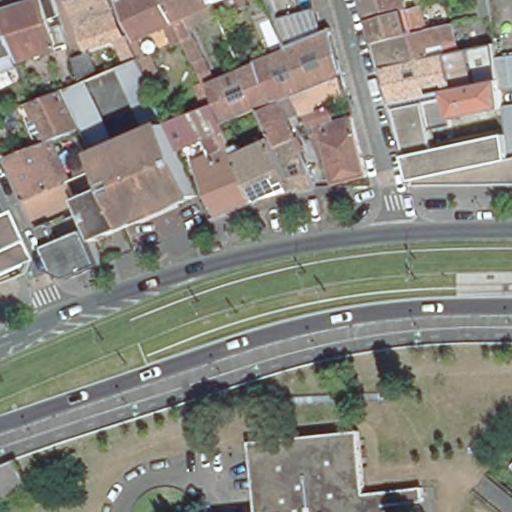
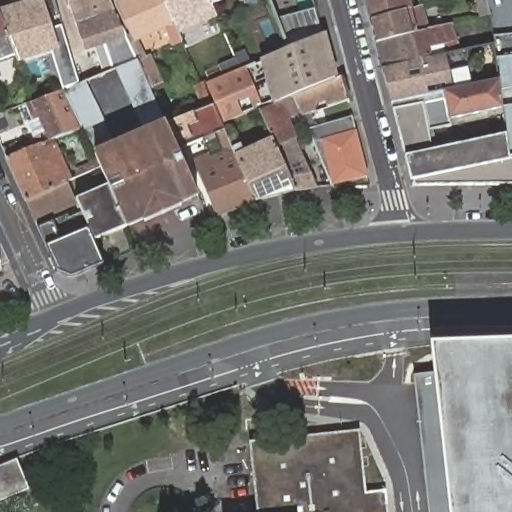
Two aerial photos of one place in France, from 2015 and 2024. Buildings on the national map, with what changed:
unchanged [(0,26),(0,8),(27,0),(50,0),(55,15),(45,18),(48,28),(57,24),(64,44),(14,59),(12,56),(0,60),(0,36),(0,26)]
unchanged [(109,6),(120,38),(85,49),(69,0),(111,0),(113,5),(109,6)]
unchanged [(184,40),(175,44),(165,25),(136,39),(119,1),(118,0),(165,0),(175,20),(184,40)]
unchanged [(184,18),(192,36),(211,78),(204,81),(202,81),(184,40),(175,20),(165,0),(211,0),(212,4),(184,18)]
unchanged [(287,47),(269,0),(323,0),(331,30),(287,47)]
unchanged [(410,10),(370,21),(364,0),(407,0),(408,5),(410,10)]
unchanged [(481,17),(477,0),(488,0),(490,15),(481,17)]
unchanged [(421,6),(425,20),(425,25),(427,30),(375,43),(370,21),(410,10),(421,6)]
unchanged [(453,24),(456,40),(428,48),(430,57),(390,66),(382,68),(375,43),(427,30),(453,24)]
unchanged [(255,60),(240,66),(230,45),(277,25),(286,48),(255,60)]
unchanged [(296,114),(286,118),(317,187),(296,190),(272,137),(260,109),(259,106),(222,120),(207,83),(256,64),(255,60),(286,48),(287,47),(331,30),(343,75),(348,93),(300,110),(296,103),(292,104),(296,114)]
unchanged [(500,79),(456,88),(442,91),(438,92),(434,93),(399,100),(390,66),(430,57),(495,44),(496,57),(500,79)]
unchanged [(73,59),(89,53),(97,75),(95,76),(85,80),(115,148),(95,156),(91,148),(82,128),(80,123),(79,119),(66,89),(66,88),(80,82),(73,59)]
unchanged [(393,109),(443,98),(442,91),(456,88),(500,79),(496,57),(512,55),(512,88),(501,89),(503,106),(450,119),(451,124),(430,129),(435,149),(507,136),(511,161),(512,161),(512,184),(413,185),(396,121),(393,109)]
unchanged [(114,69),(138,59),(166,123),(167,124),(143,135),(114,69)]
unchanged [(35,100),(66,88),(66,89),(79,119),(80,123),(82,128),(64,135),(53,140),(41,145),(38,138),(45,135),(37,118),(35,119),(29,103),(35,100)]
unchanged [(222,124),(235,153),(257,200),(220,216),(195,161),(211,154),(205,138),(179,149),(171,133),(167,124),(166,123),(214,104),(222,124)]
unchanged [(334,123),(353,116),(368,175),(332,184),(302,116),(328,107),(334,123)]
unchanged [(127,228),(115,200),(109,185),(105,177),(100,167),(97,168),(80,177),(76,170),(97,161),(95,156),(115,148),(143,135),(167,124),(171,133),(179,149),(185,161),(185,163),(194,183),(197,190),(200,195),(193,199),(175,207),(146,219),(127,228)]
unchanged [(296,190),(257,200),(235,153),(272,137),(296,190)]
unchanged [(115,200),(127,228),(95,240),(94,238),(92,236),(87,225),(76,230),(70,215),(72,214),(68,205),(35,220),(26,200),(21,189),(9,160),(8,159),(35,148),(41,145),(53,140),(56,146),(47,150),(57,174),(66,170),(71,180),(69,181),(69,182),(76,200),(109,185),(115,200)]
unchanged [(58,272),(50,254),(92,236),(94,238),(95,240),(105,264),(72,277),(58,272)]
unchanged [(0,268),(0,261),(2,267),(0,272),(0,268)]
new [(512,340),(512,512),(445,512),(427,343),(512,340)]
unchanged [(245,442),(355,430),(360,483),(368,482),(369,490),(381,491),(382,504),(383,512),(253,512),(245,442)]
unchanged [(28,489),(0,501),(0,466),(15,459),(28,489)]
demolished [(512,459),(512,471),(505,465),(512,459)]

